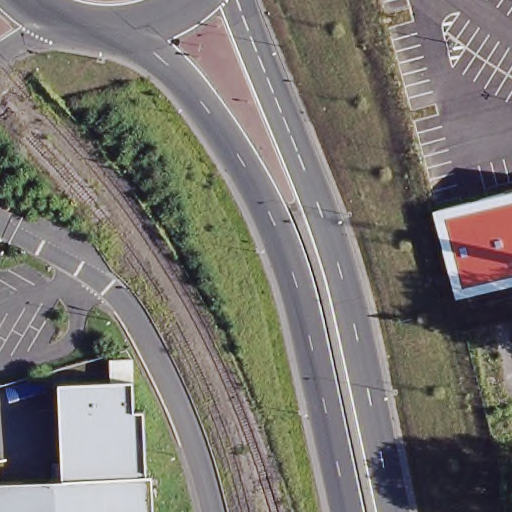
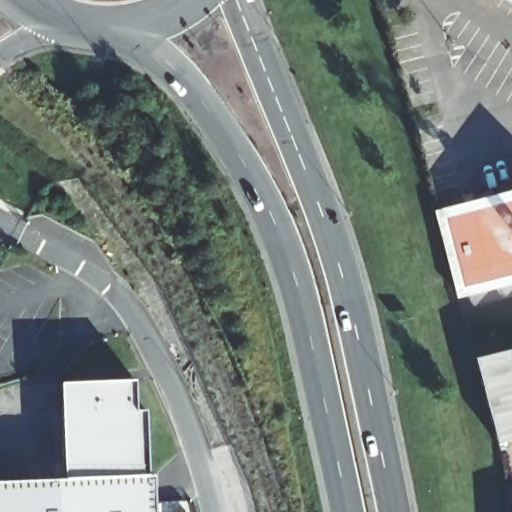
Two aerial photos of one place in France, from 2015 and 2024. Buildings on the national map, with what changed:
unchanged [(433,210),(512,189),(512,284),(455,299),(433,210)]
new [(512,434),(497,438),(475,354),(512,344),(512,434)]
unchanged [(5,480),(70,479),(68,384),(119,383),(141,383),(142,412),(151,413),(153,478),(158,478),(159,512),(0,512),(0,481),(5,480)]

